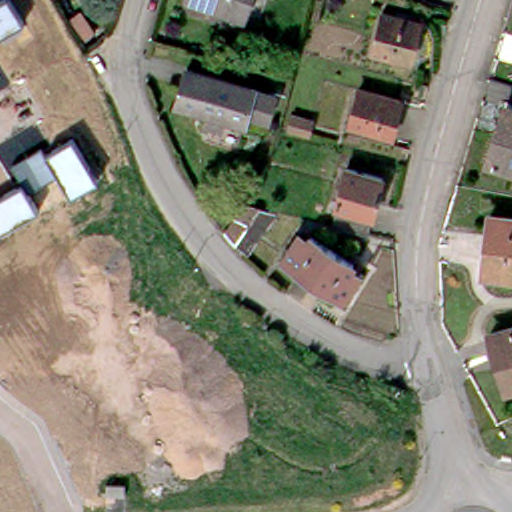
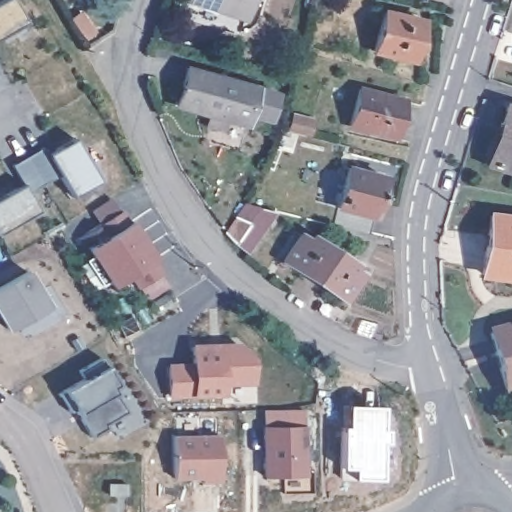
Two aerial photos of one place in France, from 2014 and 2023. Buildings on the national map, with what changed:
unchanged [(11,0),(25,22),(0,37),(0,0),(11,0)]
unchanged [(193,0),(250,0),(245,16),(193,0)]
unchanged [(421,21),(412,61),(372,52),(382,12),(421,21)]
unchanged [(269,112),(248,107),(245,118),(225,112),(221,124),(204,118),(208,107),(177,99),(187,63),(255,81),(276,86),(269,112)]
unchanged [(402,99),(392,136),(376,132),(376,135),(363,132),(365,129),(348,125),(358,87),(402,99)]
unchanged [(512,171),(493,166),(502,137),(499,136),(507,106),(512,107),(512,171)]
unchanged [(290,115),(312,117),(310,132),(288,131),(290,115)]
unchanged [(22,184),(11,162),(42,144),(47,152),(74,136),(97,179),(70,195),(57,172),(26,190),(37,210),(0,232),(0,197),(22,184)]
unchanged [(346,157),(382,167),(368,222),(346,217),(332,214),(346,157)]
unchanged [(240,192),(268,200),(240,244),(220,222),(240,192)]
new [(91,255),(88,249),(99,242),(91,230),(121,211),(132,222),(154,257),(162,275),(168,287),(145,300),(137,287),(130,276),(111,287),(107,281),(101,285),(86,260),(91,255)]
unchanged [(512,278),(486,274),(492,216),(512,218),(512,278)]
unchanged [(282,259),(299,234),(308,239),(311,234),(332,249),(313,279),(282,259)]
unchanged [(332,249),(352,262),(350,267),(360,273),(343,299),(313,279),(332,249)]
new [(28,269),(50,306),(7,330),(0,316),(0,286),(28,269)]
unchanged [(512,391),(510,392),(494,335),(512,329),(512,391)]
new [(193,396),(170,398),(168,365),(191,362),(190,345),(235,342),(251,355),(251,383),(223,383),(223,394),(193,396)]
new [(106,427),(90,435),(77,412),(74,406),(68,410),(60,392),(65,390),(82,379),(77,371),(98,359),(105,367),(113,383),(110,386),(113,392),(126,412),(105,423),(106,427)]
new [(340,428),(344,428),(345,412),(378,413),(376,480),(338,478),(340,428)]
new [(303,425),(305,476),(262,477),(260,426),(303,425)]
new [(220,482),(200,482),(200,478),(174,478),(173,436),(219,435),(220,482)]

